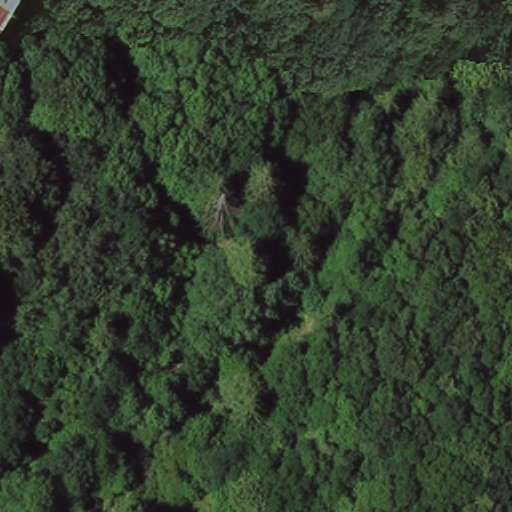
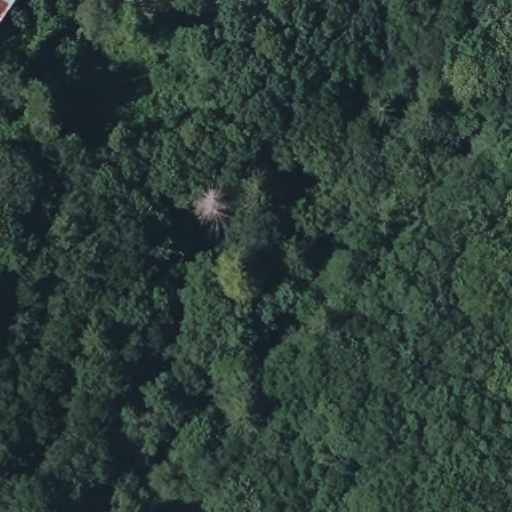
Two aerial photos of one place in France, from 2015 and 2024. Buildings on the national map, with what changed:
unchanged [(0,19),(0,0),(11,0),(0,19)]
unchanged [(305,45),(276,43),(280,21),(309,27),(305,45)]
unchanged [(12,225),(0,215),(0,196),(5,190),(26,207),(12,225)]

